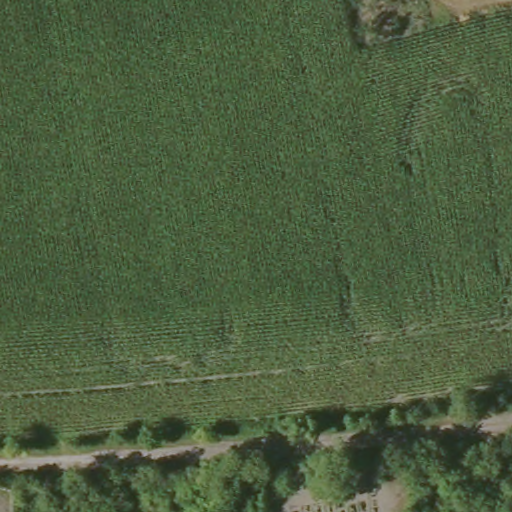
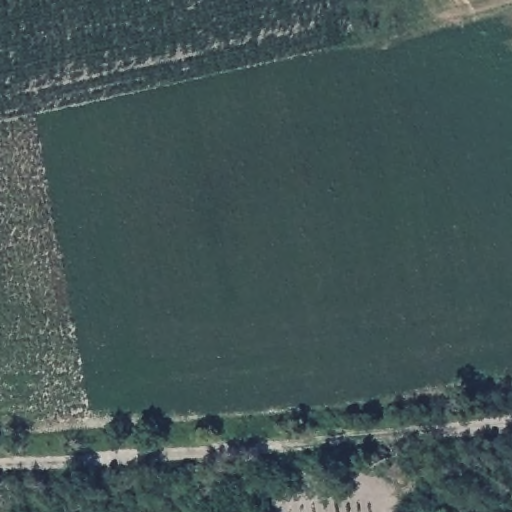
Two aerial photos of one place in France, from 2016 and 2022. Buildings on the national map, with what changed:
unchanged [(302,457),(305,476),(286,479),(283,459),(302,457)]

